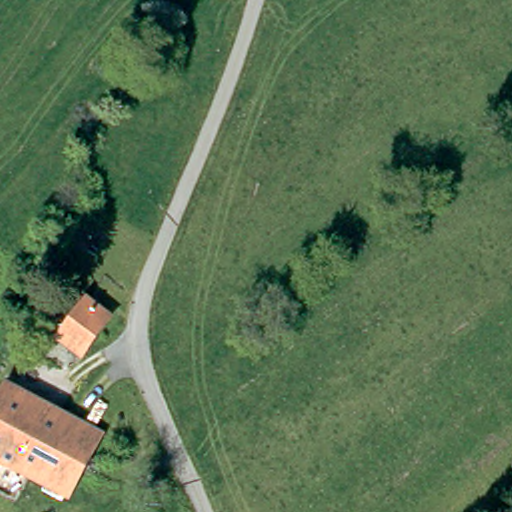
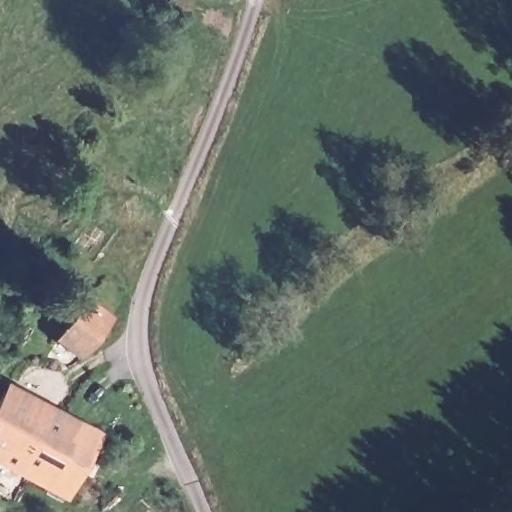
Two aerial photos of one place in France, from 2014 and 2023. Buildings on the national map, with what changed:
unchanged [(100,312),(77,350),(52,336),(75,297),(100,312)]
unchanged [(8,381),(92,431),(58,490),(27,471),(0,454),(0,395),(8,381)]
unchanged [(12,497),(0,490),(0,454),(27,471),(12,497)]

